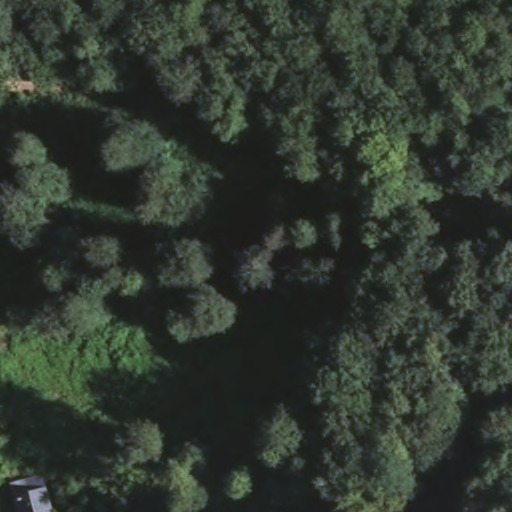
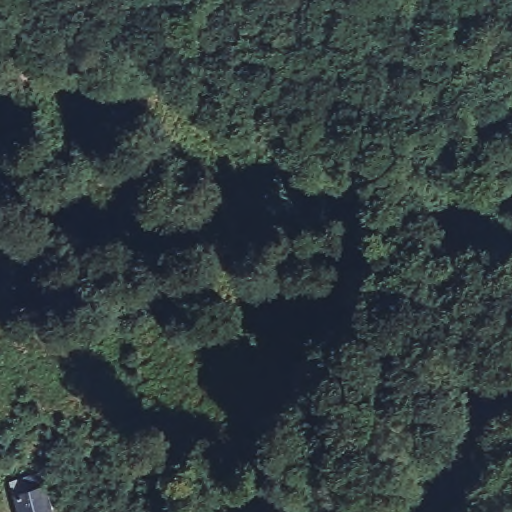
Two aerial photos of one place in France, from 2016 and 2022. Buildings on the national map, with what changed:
unchanged [(54,512),(16,512),(12,498),(47,488),(54,512)]

